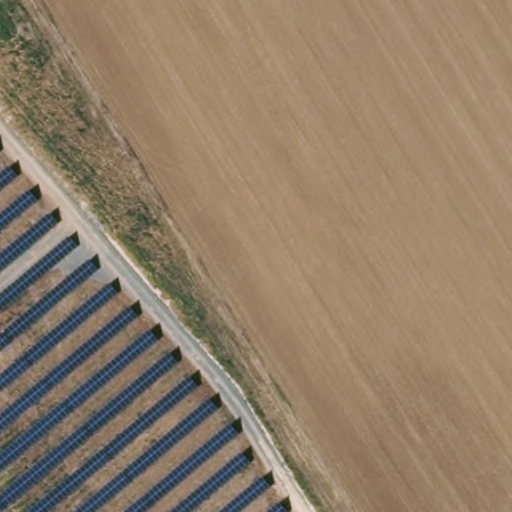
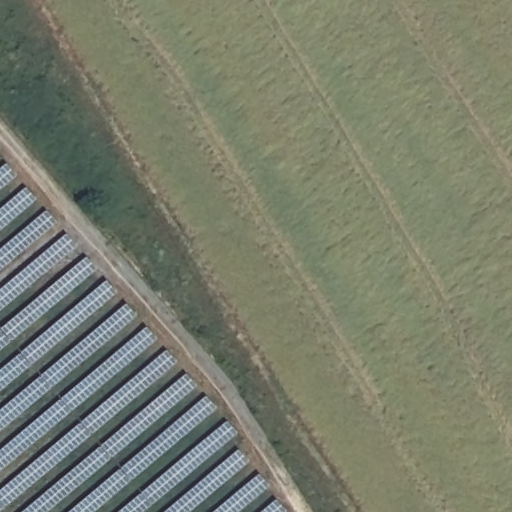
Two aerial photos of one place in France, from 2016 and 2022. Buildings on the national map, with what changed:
[]

